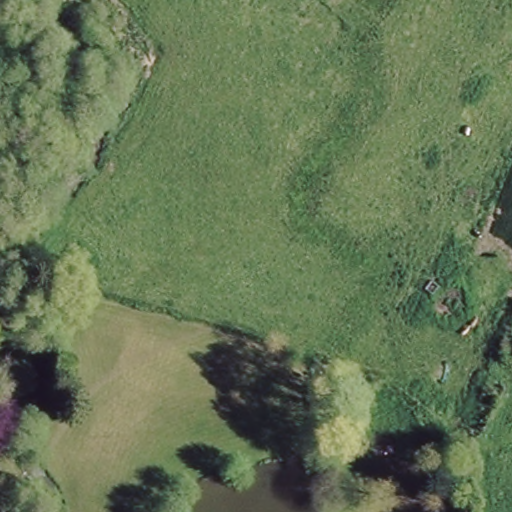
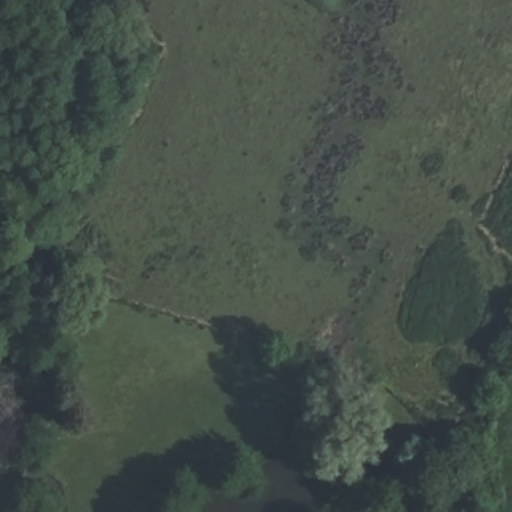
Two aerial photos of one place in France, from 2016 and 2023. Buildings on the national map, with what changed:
[]

